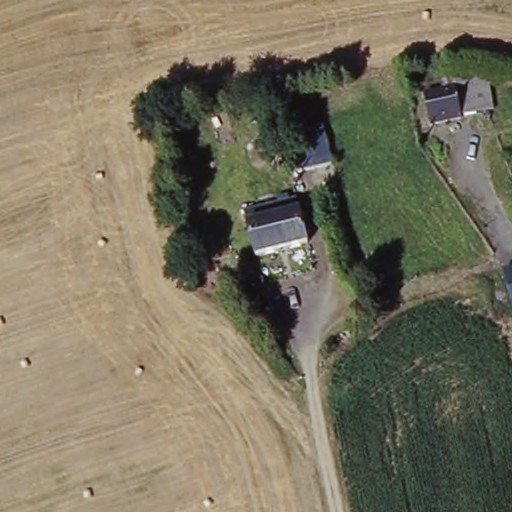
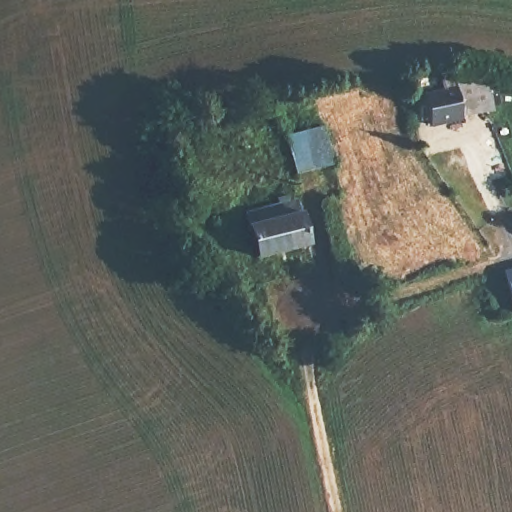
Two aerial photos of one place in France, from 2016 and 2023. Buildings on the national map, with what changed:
unchanged [(499,118),(444,131),(439,102),(445,100),(443,86),(456,83),(457,90),(491,83),(499,118)]
unchanged [(303,177),(294,139),(292,132),(328,125),(338,170),(321,174),(303,177)]
unchanged [(306,226),(312,223),(313,238),(309,239),(311,252),(262,263),(250,220),(302,209),(306,226)]
unchanged [(512,273),(512,291),(509,274),(512,273)]

